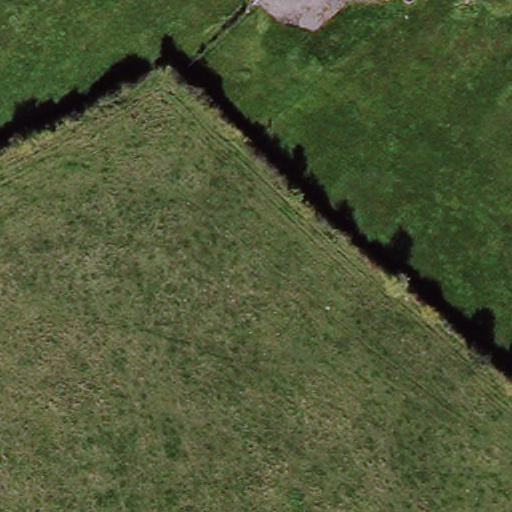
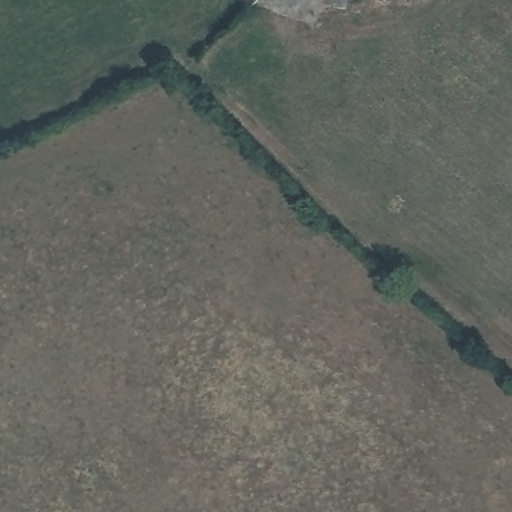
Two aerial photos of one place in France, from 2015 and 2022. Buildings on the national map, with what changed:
unchanged [(378,0),(393,0),(389,6),(378,0)]

